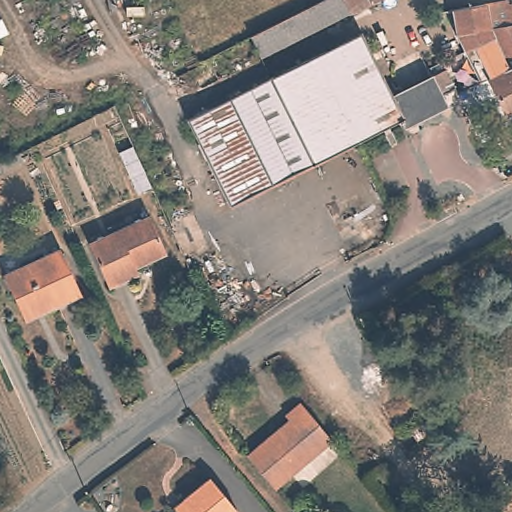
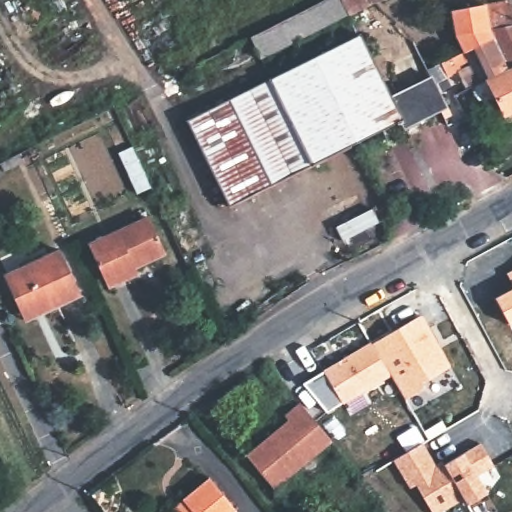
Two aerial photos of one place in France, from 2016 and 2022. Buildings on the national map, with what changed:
unchanged [(261,59),(250,37),(324,0),(379,0),(350,15),(261,59)]
unchanged [(507,2),(508,5),(512,5),(512,113),(506,116),(497,97),(488,103),(483,103),(478,100),(475,97),(474,93),(474,90),(475,86),(480,83),(457,35),(452,11),(507,2)]
unchanged [(391,98),(445,71),(455,89),(441,96),(446,107),(405,127),(402,121),(230,207),(187,120),(359,34),(391,98)]
unchanged [(119,151),(135,144),(155,188),(138,197),(119,151)]
unchanged [(164,252),(126,269),(128,273),(107,283),(90,244),(148,217),(164,252)]
unchanged [(23,314),(5,275),(60,250),(81,296),(53,309),(26,321),(23,314)]
new [(505,272),(512,270),(512,288),(505,272)]
new [(512,289),(512,324),(510,325),(495,296),(512,289)]
new [(421,314),(451,366),(420,383),(422,388),(404,398),(390,374),(342,402),(322,371),(421,314)]
unchanged [(289,425),(285,421),(300,408),(332,446),(275,494),(246,461),(289,425)]
new [(436,465),(442,460),(445,466),(464,454),(479,442),(492,466),(488,469),(493,478),(484,485),(488,491),(467,504),(463,498),(437,512),(432,512),(417,484),(408,489),(391,461),(423,443),(436,465)]
unchanged [(235,512),(176,512),(173,508),(183,500),(210,478),(237,511),(235,512)]

